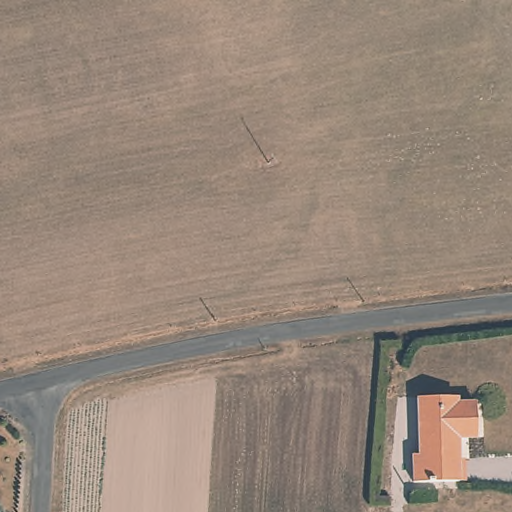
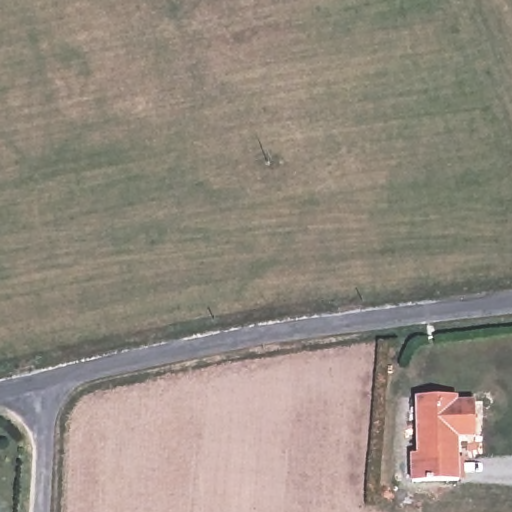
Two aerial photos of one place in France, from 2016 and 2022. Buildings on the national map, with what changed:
unchanged [(458,402),(480,402),(480,432),(461,433),(462,482),(414,482),(413,455),(421,454),(420,398),(458,397),(458,402)]

